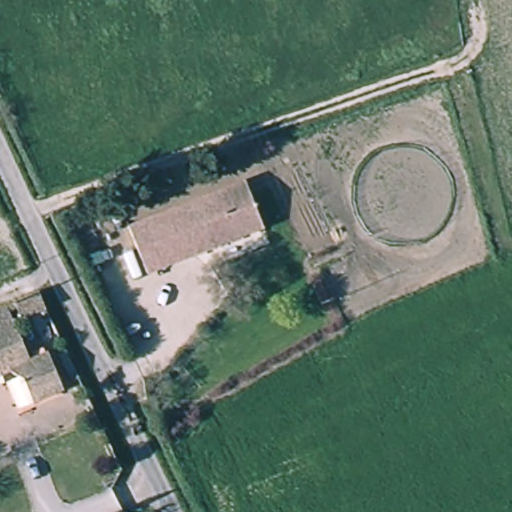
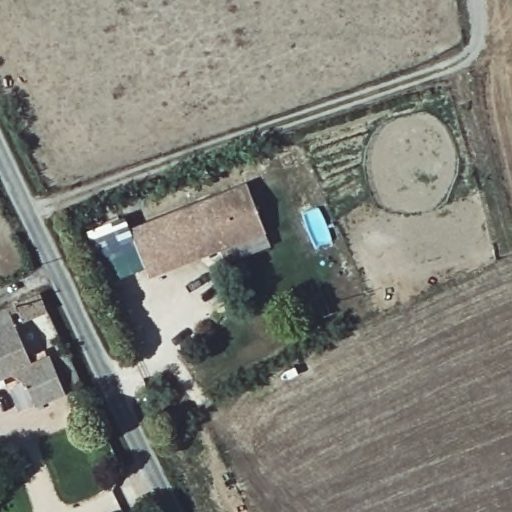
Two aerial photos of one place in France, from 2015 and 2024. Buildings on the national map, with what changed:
unchanged [(247,184),(265,231),(147,272),(132,224),(247,184)]
unchanged [(16,327),(7,311),(42,294),(51,312),(16,327)]
unchanged [(46,355),(64,392),(32,407),(17,378),(0,385),(0,335),(16,327),(33,360),(46,355)]

